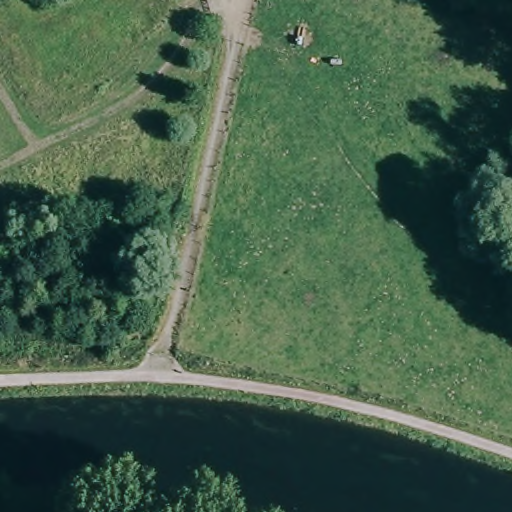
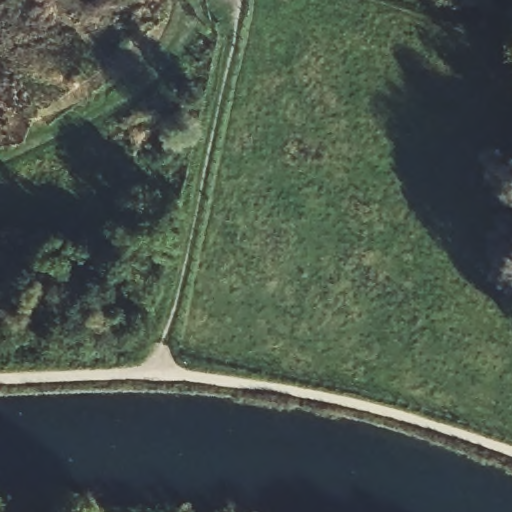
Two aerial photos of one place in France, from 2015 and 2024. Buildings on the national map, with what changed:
[]

